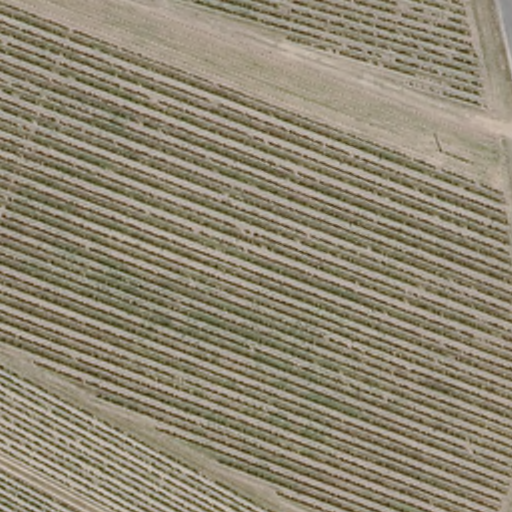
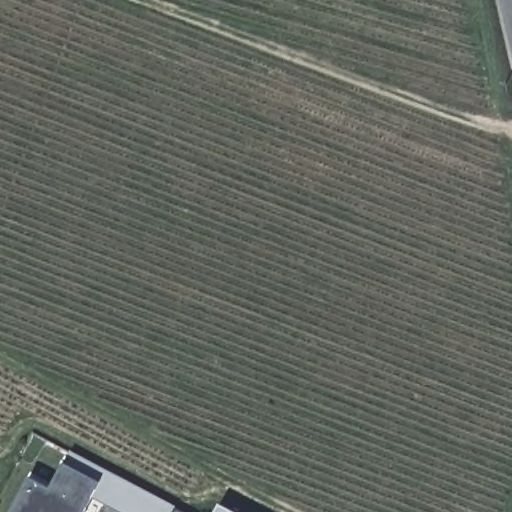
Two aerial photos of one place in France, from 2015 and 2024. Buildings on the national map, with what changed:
new [(95,497),(104,481),(67,462),(73,452),(178,507),(175,512),(123,512),(95,497)]
new [(33,475),(54,487),(67,462),(104,481),(95,497),(87,512),(13,512),(33,475)]
new [(222,504),(237,512),(217,512),(222,504)]

